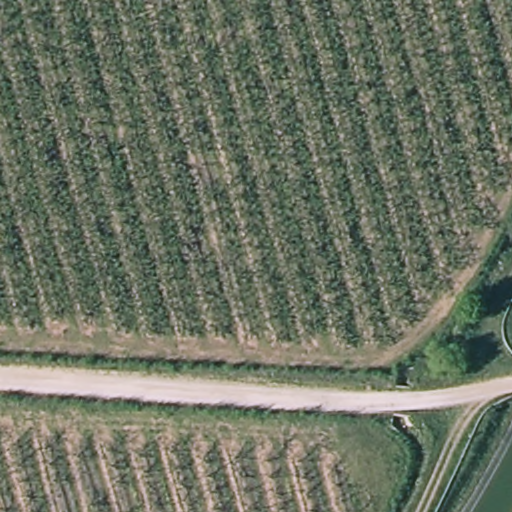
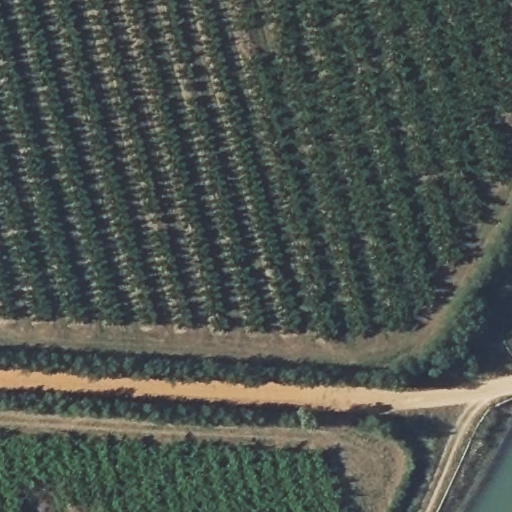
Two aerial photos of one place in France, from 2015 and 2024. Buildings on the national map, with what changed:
[]

